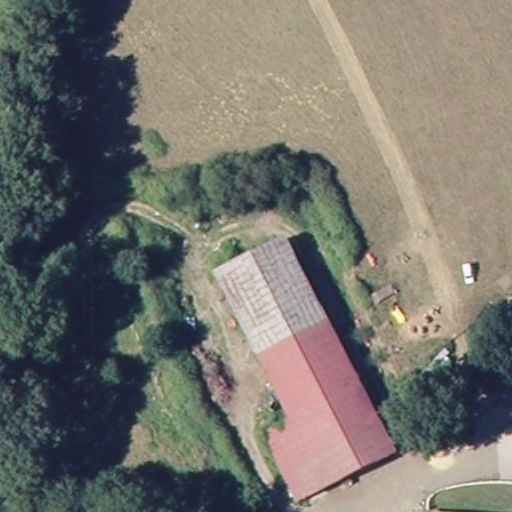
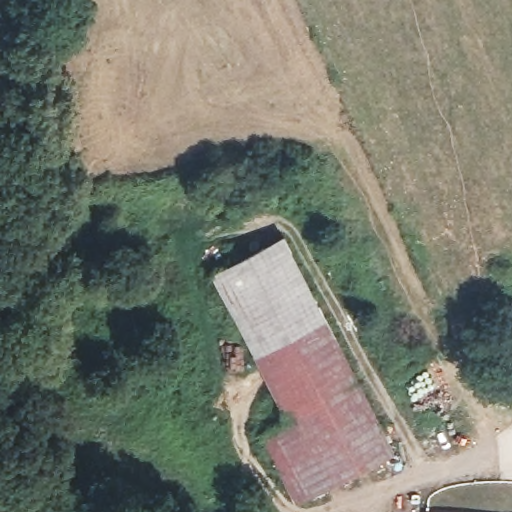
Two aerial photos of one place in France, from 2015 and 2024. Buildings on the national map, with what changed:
unchanged [(283,233),(389,456),(286,504),(253,434),(280,421),(209,268),(283,233)]

